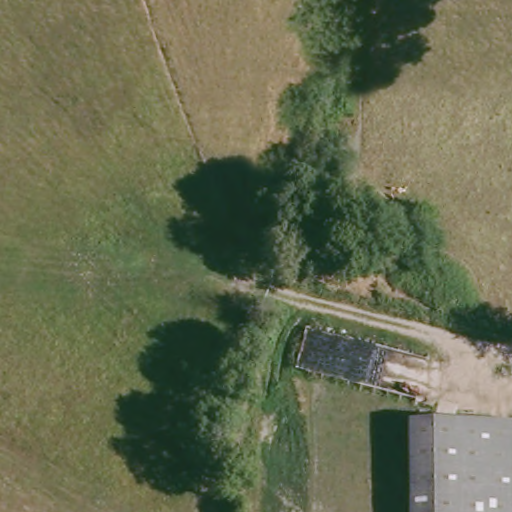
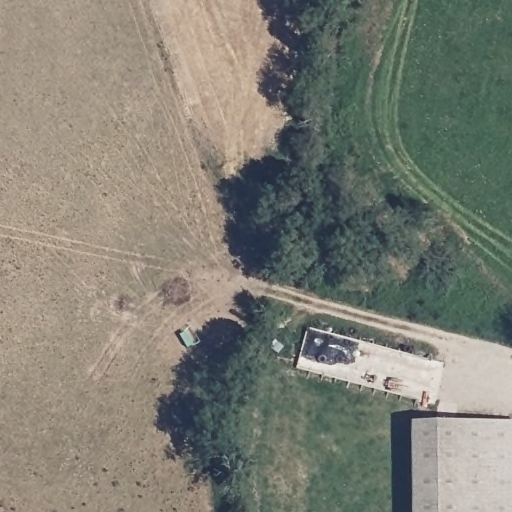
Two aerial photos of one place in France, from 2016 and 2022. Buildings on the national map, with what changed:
unchanged [(512,422),(512,512),(408,512),(409,422),(512,422)]

